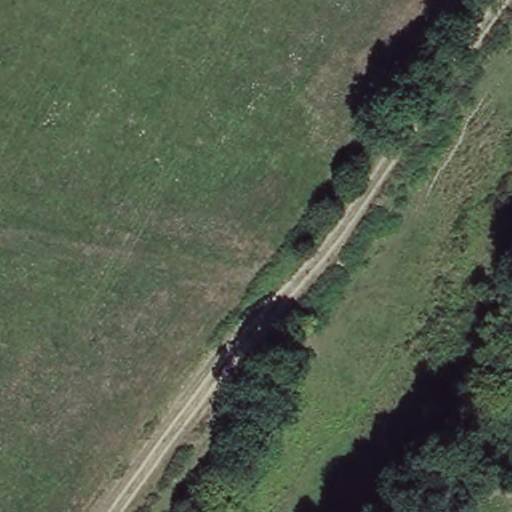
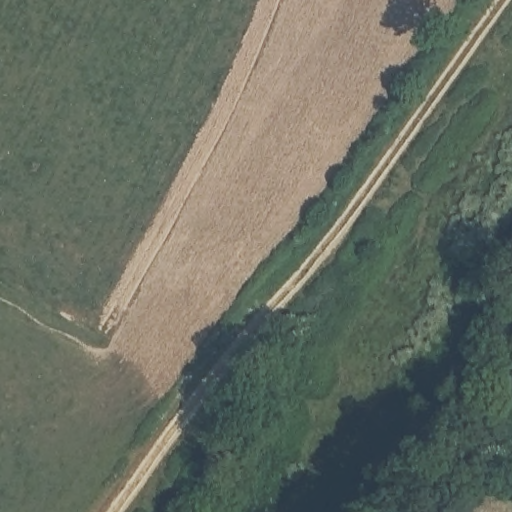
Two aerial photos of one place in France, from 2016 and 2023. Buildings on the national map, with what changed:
[]

